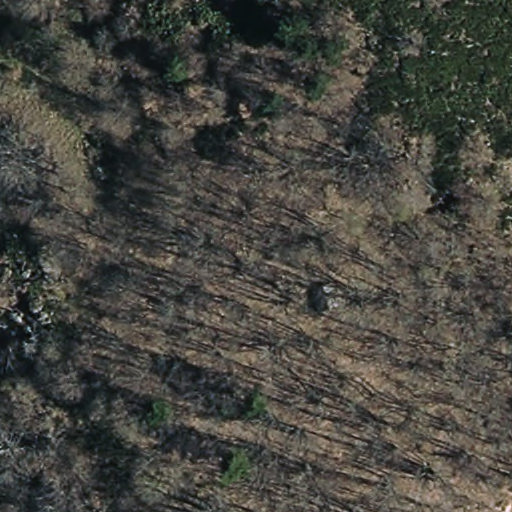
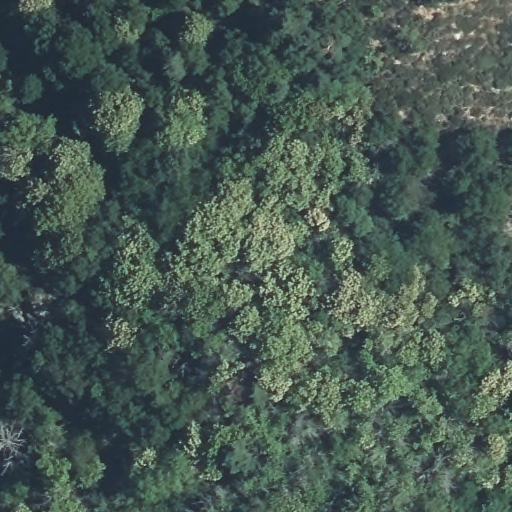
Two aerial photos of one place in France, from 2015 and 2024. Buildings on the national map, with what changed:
unchanged [(367,302),(350,307),(342,278),(360,274),(367,302)]

